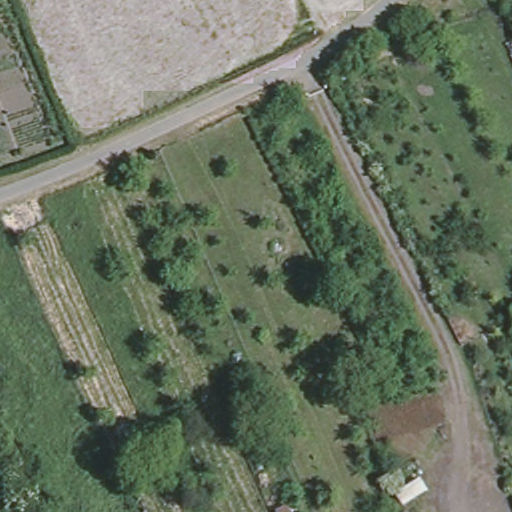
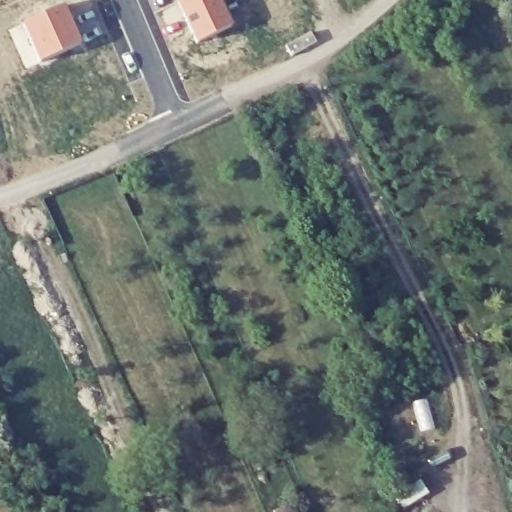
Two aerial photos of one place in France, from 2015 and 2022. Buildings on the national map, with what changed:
new [(234,24),(198,42),(179,0),(222,0),(234,24)]
new [(82,42),(40,61),(23,22),(65,3),(82,42)]

